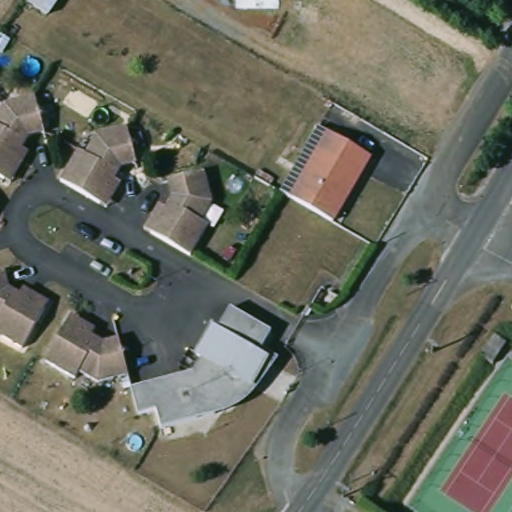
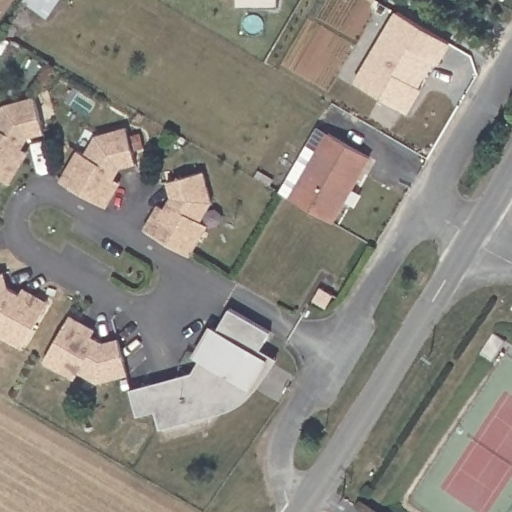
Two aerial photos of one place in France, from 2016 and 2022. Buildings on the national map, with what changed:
unchanged [(60,0),(47,19),(21,0),(60,0)]
new [(396,10),(452,43),(439,65),(435,61),(418,87),(422,90),(409,113),(355,80),(396,10)]
unchanged [(12,177),(6,174),(0,170),(0,112),(8,99),(40,91),(48,128),(32,131),(25,143),(31,146),(22,162),(12,177)]
unchanged [(107,204),(102,200),(62,176),(81,146),(88,150),(100,132),(131,125),(139,161),(124,165),(117,175),(122,179),(107,204)]
unchanged [(281,195),(311,146),(317,136),(321,129),(332,135),(372,159),(367,165),(333,224),(281,195)]
unchanged [(161,198),(167,201),(174,190),(170,175),(207,166),(214,196),(202,215),(209,220),(191,250),(152,226),(146,222),(161,198)]
demolished [(458,202),(447,221),(429,212),(440,191),(458,202)]
unchanged [(0,274),(10,271),(13,286),(24,293),(28,287),(52,303),(49,309),(25,347),(0,332),(0,274)]
unchanged [(252,390),(252,391),(251,391),(251,392),(250,392),(250,393),(249,394),(249,395),(248,395),(247,395),(247,396),(247,397),(246,397),(245,398),(245,399),(244,399),(244,400),(243,400),(242,400),(242,401),(241,401),(241,402),(240,402),(239,403),(238,403),(237,404),(237,405),(236,405),(235,406),(234,406),(233,407),(232,407),(231,408),(230,408),(229,409),(228,409),(227,410),(226,410),(225,410),(224,410),(223,411),(222,411),(221,411),(220,412),(219,412),(218,412),(217,412),(216,412),(215,412),(214,413),(213,413),(212,413),(211,413),(217,401),(210,413),(157,426),(152,408),(135,412),(128,386),(190,370),(194,365),(199,356),(194,353),(210,327),(215,330),(229,307),(270,332),(259,350),(276,360),(252,390)]
unchanged [(122,335),(131,371),(99,380),(81,367),(76,375),(46,355),(71,317),(74,311),(99,327),(95,332),(106,340),(122,335)]

